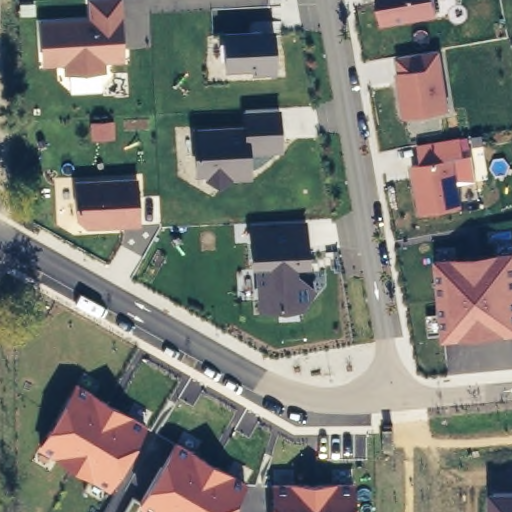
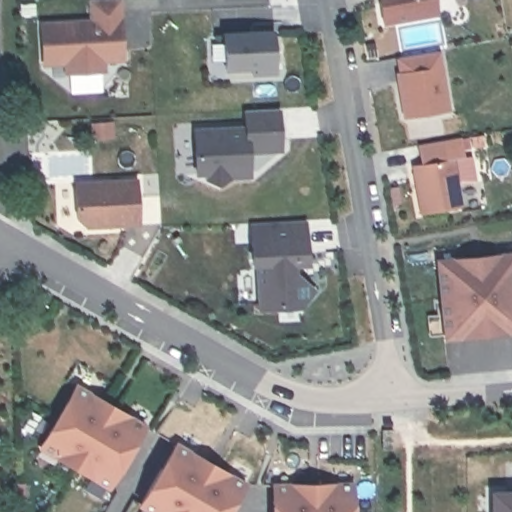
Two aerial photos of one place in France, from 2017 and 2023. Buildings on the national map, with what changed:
unchanged [(125,61),(105,63),(107,73),(63,75),(62,66),(41,67),(37,21),(87,18),(87,0),(122,0),(125,61)]
unchanged [(382,27),(376,0),(435,0),(438,17),(382,27)]
unchanged [(277,75),(249,76),(249,70),(224,70),(222,32),(273,29),(277,75)]
unchanged [(400,119),(392,72),(397,71),(394,55),(440,49),(450,113),(400,119)]
unchanged [(250,154),(252,178),(230,179),(217,185),(205,183),(205,179),(196,178),(192,128),(243,125),(242,109),(278,107),(280,153),(250,154)]
unchanged [(417,145),(469,137),(475,180),(455,180),(452,159),(431,163),(422,165),(417,145)]
unchanged [(417,215),(407,167),(452,159),(461,208),(417,215)]
unchanged [(140,226),(87,229),(75,218),(74,180),(136,177),(140,226)]
unchanged [(310,265),(297,267),(298,277),(316,290),(305,308),(255,311),(248,224),(305,220),(310,265)]
unchanged [(443,336),(435,264),(512,255),(512,329),(443,336)]
unchanged [(147,425),(110,491),(37,449),(75,383),(147,425)]
unchanged [(231,512),(148,512),(137,506),(175,442),(247,484),(231,512)]
unchanged [(356,512),(272,512),(272,482),(355,482),(356,512)]
unchanged [(512,490),(512,512),(491,512),(491,491),(512,490)]

